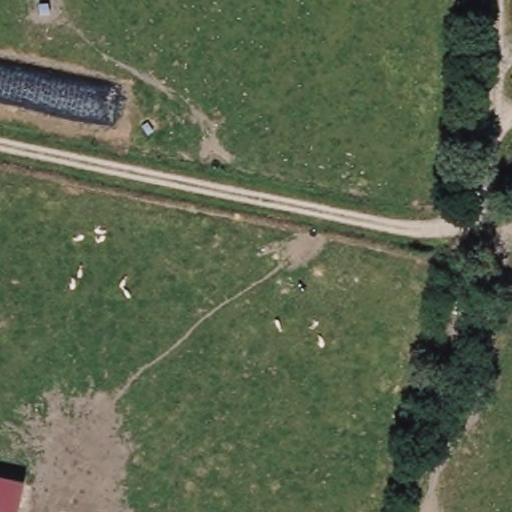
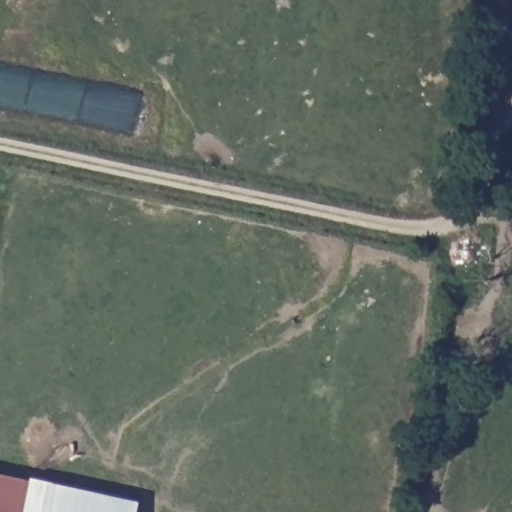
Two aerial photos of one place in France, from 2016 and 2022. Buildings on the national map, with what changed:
unchanged [(0,474),(25,479),(17,512),(0,512),(0,474)]
new [(25,479),(27,474),(137,500),(134,512),(17,512),(25,479)]

